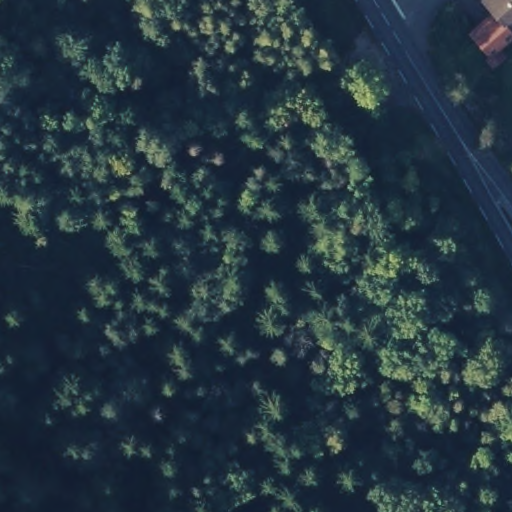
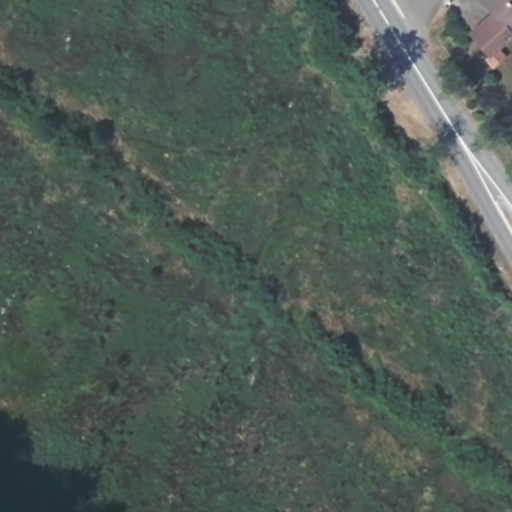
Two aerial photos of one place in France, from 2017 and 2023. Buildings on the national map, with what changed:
unchanged [(483,0),(512,0),(512,23),(509,26),(483,0)]

